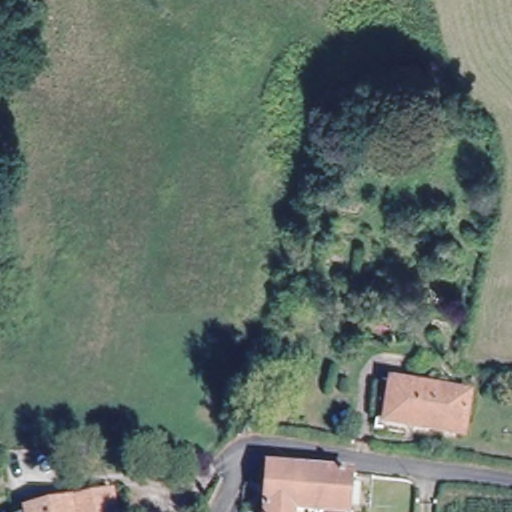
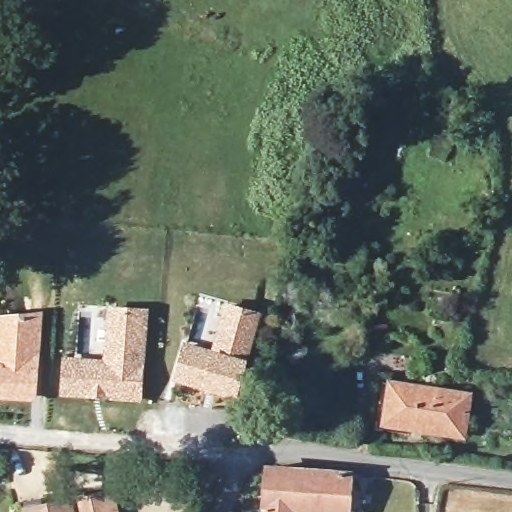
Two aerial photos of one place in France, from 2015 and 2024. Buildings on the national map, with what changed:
new [(220,299),(262,311),(249,358),(211,347),(220,299)]
new [(61,356),(103,357),(106,306),(150,307),(143,402),(58,397),(61,356)]
new [(37,402),(0,399),(0,314),(44,312),(37,402)]
new [(183,339),(211,347),(249,358),(237,398),(171,382),(183,339)]
unchanged [(468,397),(462,436),(385,423),(390,384),(468,397)]
unchanged [(346,472),(343,512),(325,512),(290,510),(289,512),(260,512),(263,467),(346,472)]
unchanged [(107,494),(111,512),(25,512),(26,512),(107,494)]

